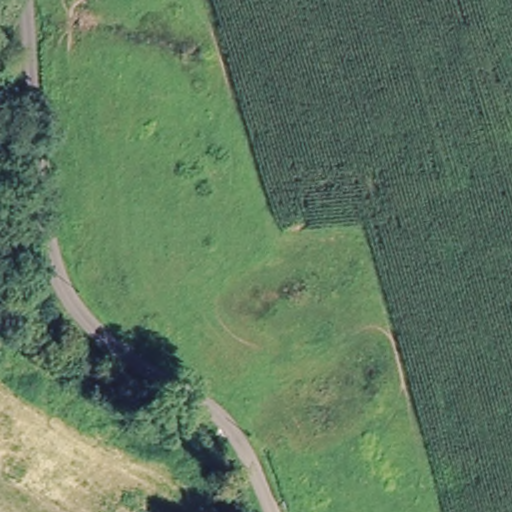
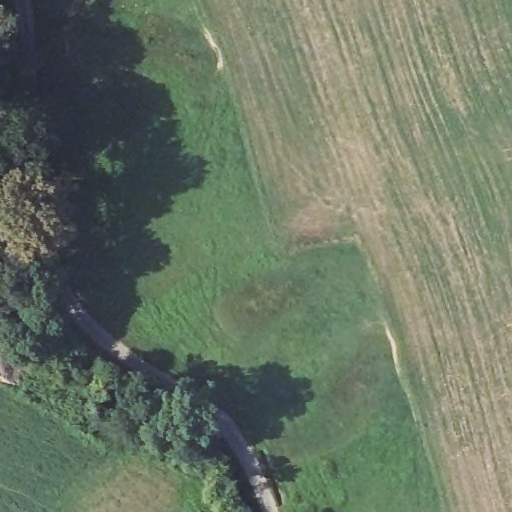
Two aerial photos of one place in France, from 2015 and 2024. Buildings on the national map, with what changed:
[]

